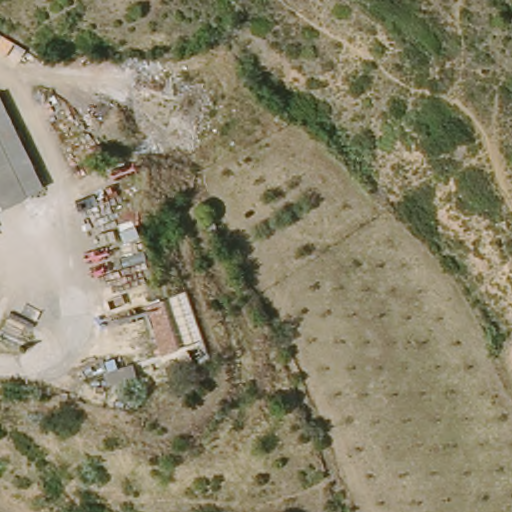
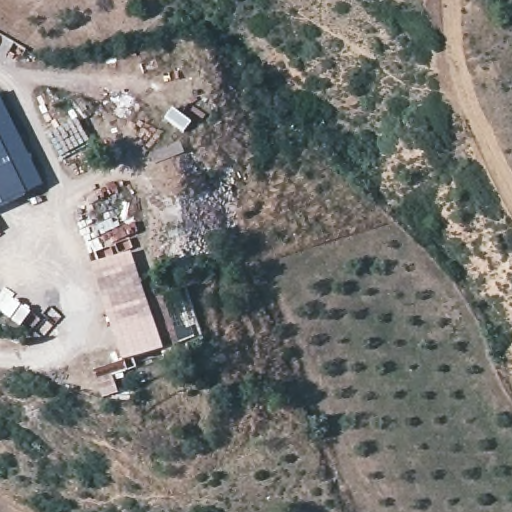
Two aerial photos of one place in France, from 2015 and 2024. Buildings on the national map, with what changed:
unchanged [(2,91),(47,189),(0,211),(0,92),(2,91)]
new [(94,372),(122,360),(90,266),(131,254),(147,300),(162,297),(180,344),(165,351),(125,364),(135,389),(103,401),(94,372)]

